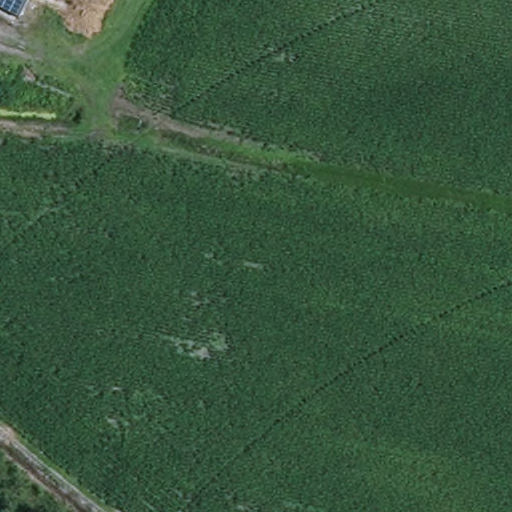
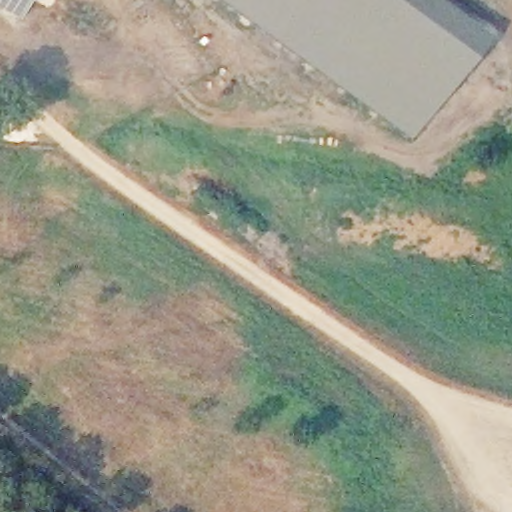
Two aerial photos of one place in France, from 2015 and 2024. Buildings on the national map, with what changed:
unchanged [(0,0),(28,0),(24,10),(0,0)]
new [(223,0),(437,0),(487,36),(414,140),(223,0)]

